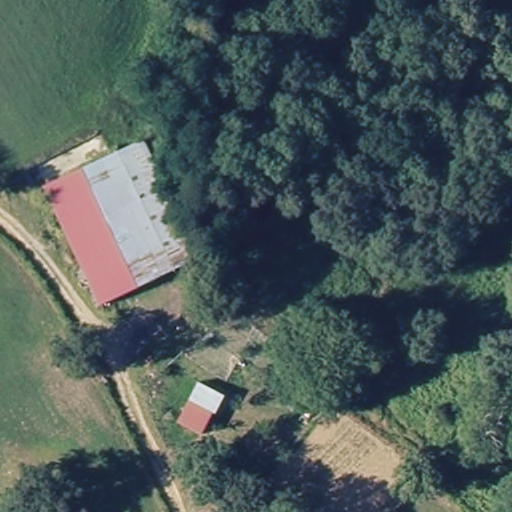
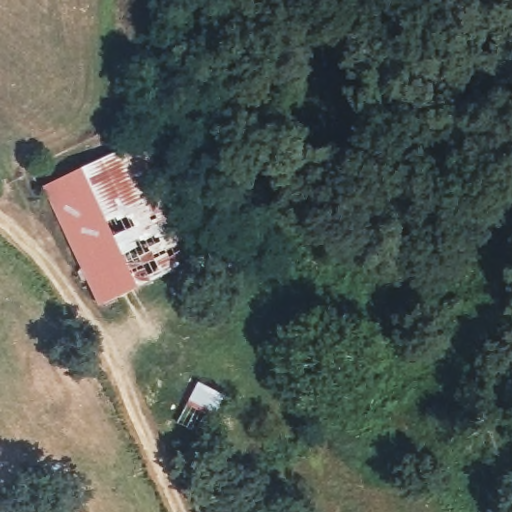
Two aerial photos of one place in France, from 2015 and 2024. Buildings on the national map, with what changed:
unchanged [(145,140),(205,254),(100,306),(45,187),(145,140)]
unchanged [(201,433),(176,421),(198,381),(225,395),(215,413),(212,412),(201,433)]

